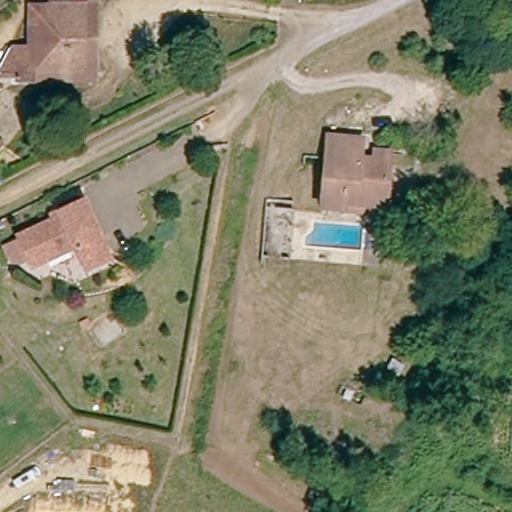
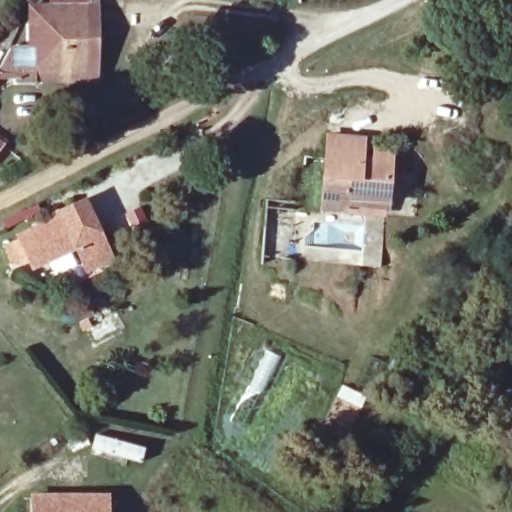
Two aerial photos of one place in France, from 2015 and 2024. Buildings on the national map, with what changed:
unchanged [(83,12),(79,71),(28,71),(28,85),(0,83),(0,74),(10,54),(26,55),(29,27),(40,28),(42,11),(44,11),(46,0),(94,0),(94,13),(83,12)]
unchanged [(28,85),(28,71),(79,71),(83,12),(94,13),(89,87),(28,85)]
demolished [(0,153),(0,135),(5,137),(0,153)]
unchanged [(334,211),(322,210),(327,136),(366,138),(364,156),(371,157),(373,149),(394,151),(390,209),(386,218),(336,214),(334,211)]
unchanged [(75,277),(65,255),(39,267),(35,260),(26,264),(19,247),(28,243),(25,238),(69,219),(66,212),(91,201),(116,258),(75,277)]
new [(109,493),(109,512),(31,512),(31,493),(109,493)]

